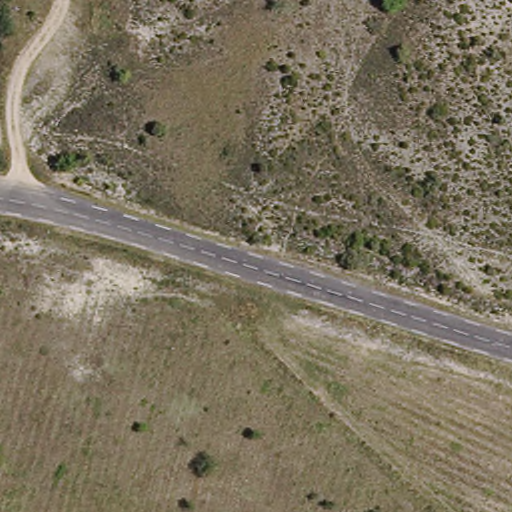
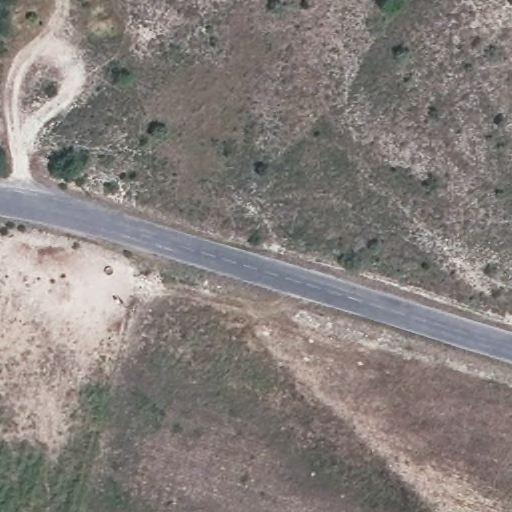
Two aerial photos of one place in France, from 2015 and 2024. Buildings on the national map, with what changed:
[]

